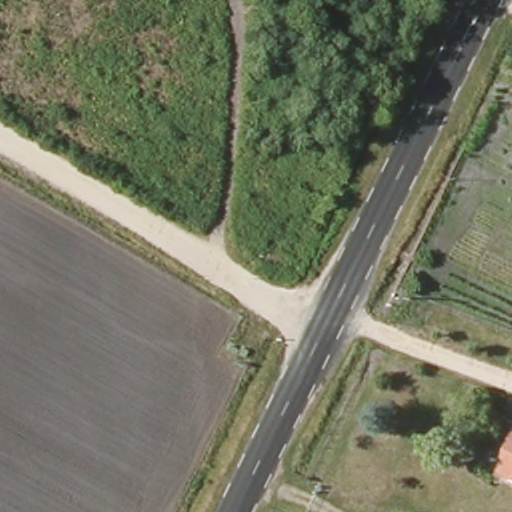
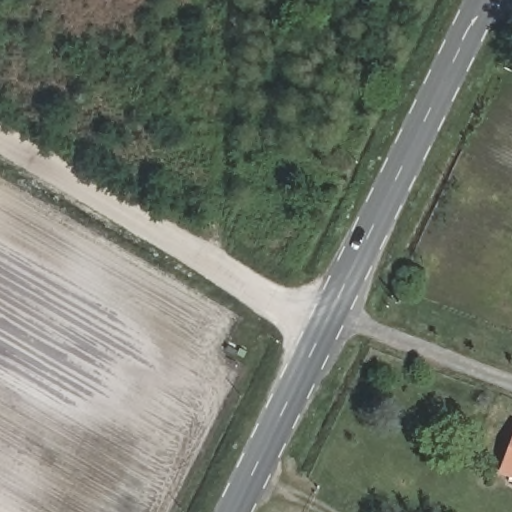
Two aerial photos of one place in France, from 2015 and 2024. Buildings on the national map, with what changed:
unchanged [(507,469),(512,459),(512,472),(507,469)]

